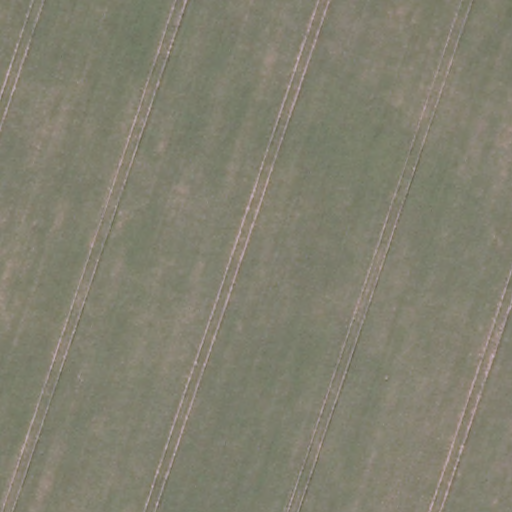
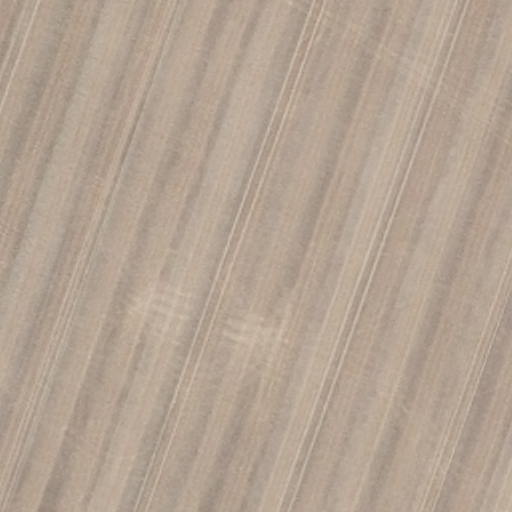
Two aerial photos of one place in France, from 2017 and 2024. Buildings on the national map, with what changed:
[]

